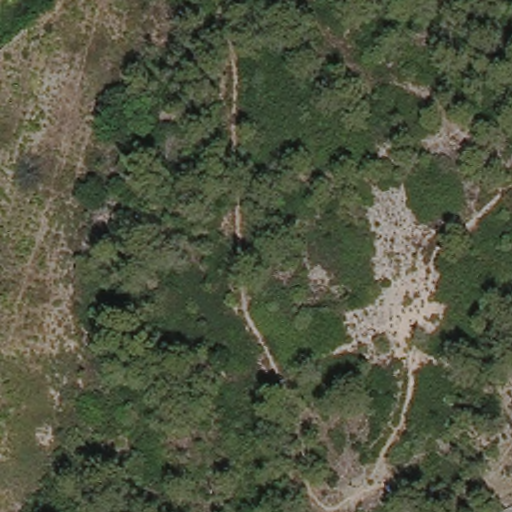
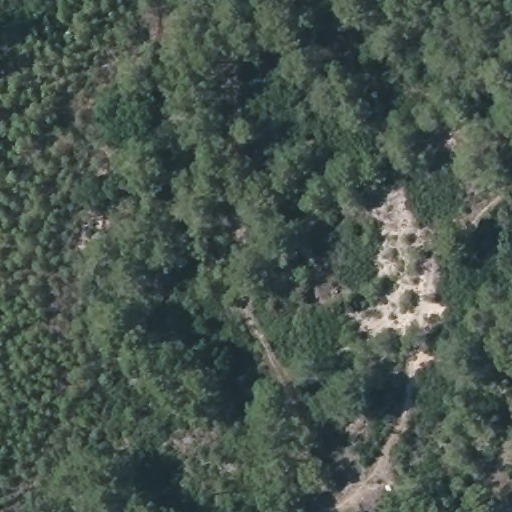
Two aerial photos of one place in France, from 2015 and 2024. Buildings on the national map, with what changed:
[]

